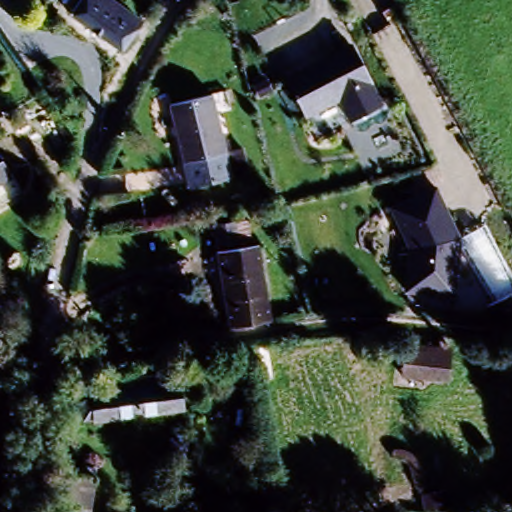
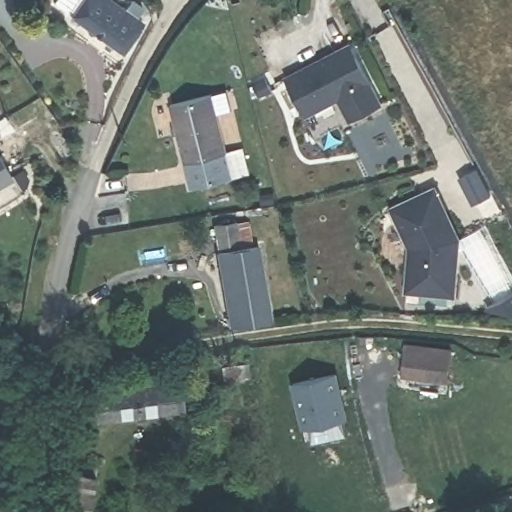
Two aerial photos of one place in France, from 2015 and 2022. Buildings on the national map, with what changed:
unchanged [(67,25),(83,3),(133,41),(116,63),(67,25)]
unchanged [(388,103),(354,124),(341,97),(308,111),(289,76),(356,42),(388,103)]
unchanged [(188,184),(169,104),(210,94),(218,129),(233,125),(244,171),(188,184)]
unchanged [(10,175),(0,181),(0,160),(10,175)]
unchanged [(468,234),(462,295),(412,289),(416,255),(396,211),(444,184),(468,234)]
unchanged [(208,236),(225,232),(231,260),(238,257),(253,322),(229,327),(208,236)]
unchanged [(402,387),(402,353),(449,355),(449,388),(402,387)]
new [(338,370),(348,417),(303,428),(292,382),(338,370)]
unchanged [(192,407),(115,420),(110,394),(134,390),(132,377),(151,375),(153,387),(188,381),(192,407)]
unchanged [(56,512),(70,465),(98,475),(87,512),(56,512)]

